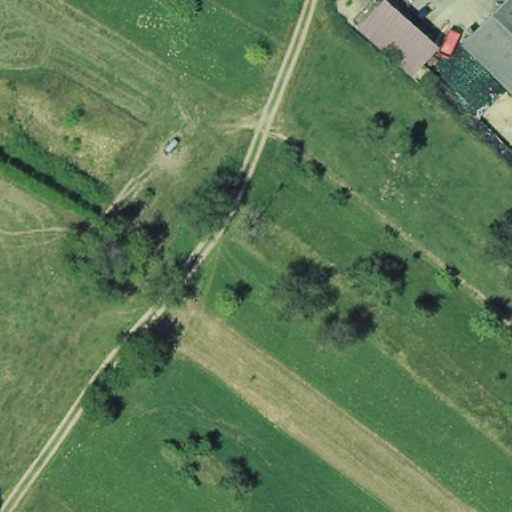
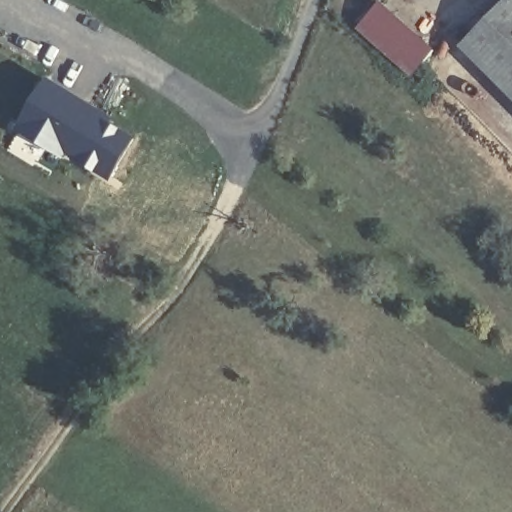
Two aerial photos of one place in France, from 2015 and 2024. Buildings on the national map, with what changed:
unchanged [(504,0),(512,0),(512,97),(459,44),(504,0)]
unchanged [(379,9),(432,55),(413,78),(359,30),(379,9)]
new [(113,122),(113,126),(129,137),(107,178),(95,169),(92,174),(64,156),(61,164),(8,135),(40,72),(113,122)]

